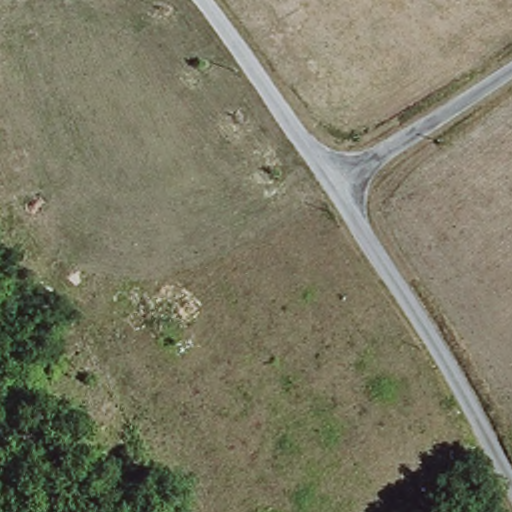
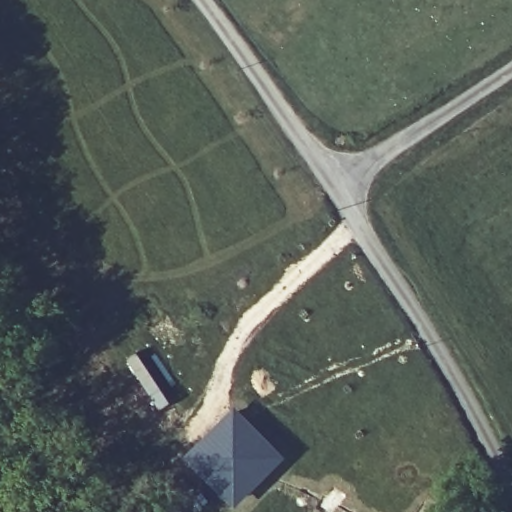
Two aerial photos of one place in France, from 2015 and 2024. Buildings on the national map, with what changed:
new [(234,405),(285,456),(232,507),(182,456),(234,405)]

